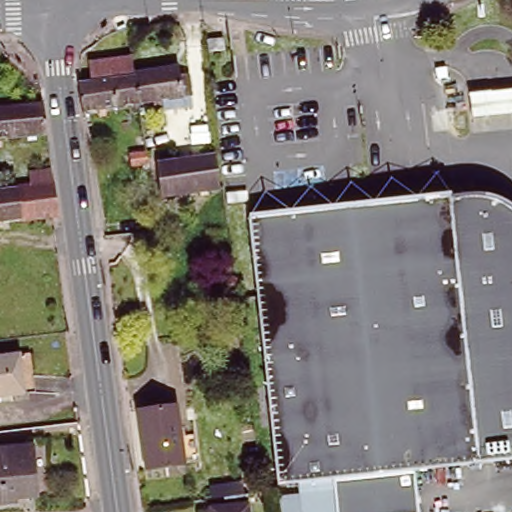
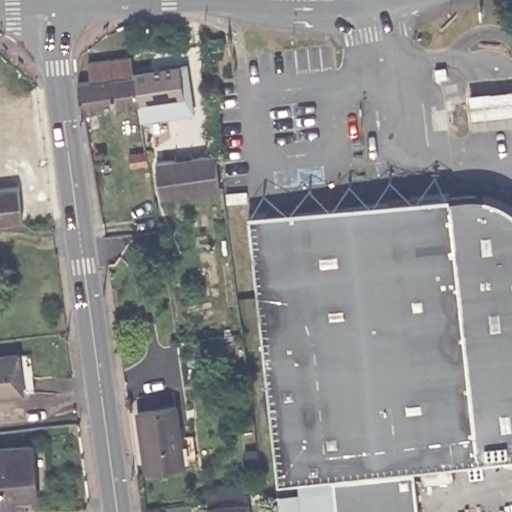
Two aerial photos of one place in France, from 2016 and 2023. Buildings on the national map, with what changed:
unchanged [(219,43),(221,53),(209,54),(208,45),(219,43)]
unchanged [(142,109),(85,115),(80,85),(90,84),(88,67),(134,63),(136,75),(142,109)]
unchanged [(182,71),(183,80),(191,80),(194,114),(167,117),(166,107),(142,109),(136,75),(182,71)]
unchanged [(512,90),(512,112),(478,117),(475,96),(512,90)]
unchanged [(0,135),(0,103),(37,100),(43,99),(47,131),(0,135)]
unchanged [(185,204),(183,189),(167,191),(163,157),(216,151),(219,182),(226,181),(229,199),(185,204)]
unchanged [(148,169),(132,171),(131,160),(146,158),(148,169)]
unchanged [(35,190),(33,177),(56,174),(58,187),(63,220),(58,221),(26,225),(22,192),(35,190)]
unchanged [(22,192),(26,225),(0,228),(0,194),(22,192)]
unchanged [(418,512),(336,512),(333,477),(278,483),(249,215),(450,195),(472,194),(490,196),(507,203),(512,207),(512,457),(479,461),(413,468),(418,512)]
unchanged [(0,389),(0,352),(16,351),(16,354),(19,388),(0,389)]
unchanged [(143,404),(178,399),(186,452),(151,457),(143,404)]
unchanged [(31,444),(36,495),(0,498),(0,447),(31,444)]
unchanged [(277,512),(276,496),(301,493),(303,512),(277,512)]
unchanged [(252,499),(254,512),(222,512),(221,503),(252,499)]

